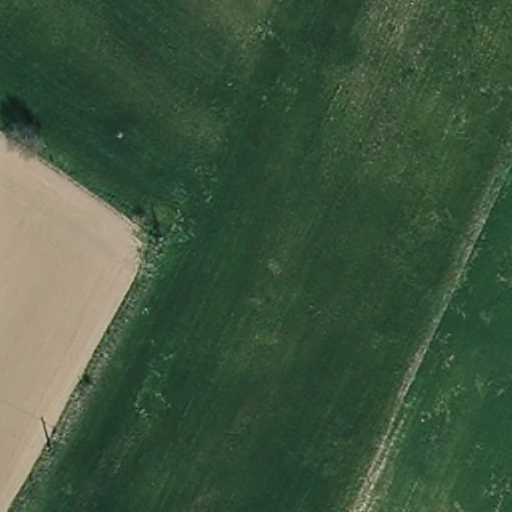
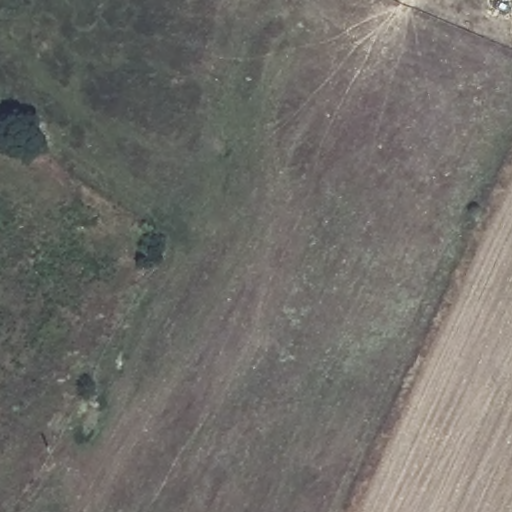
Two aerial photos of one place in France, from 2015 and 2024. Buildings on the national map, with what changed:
[]

